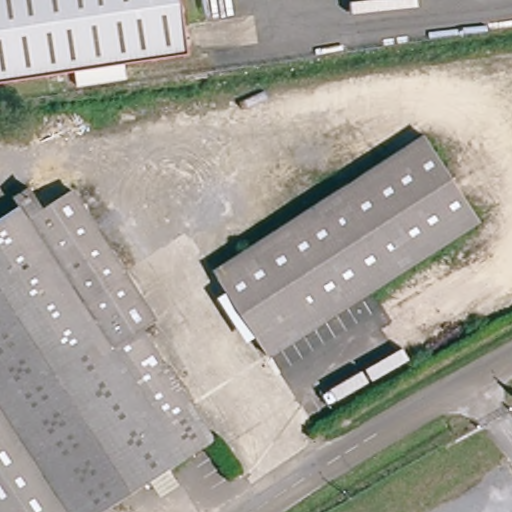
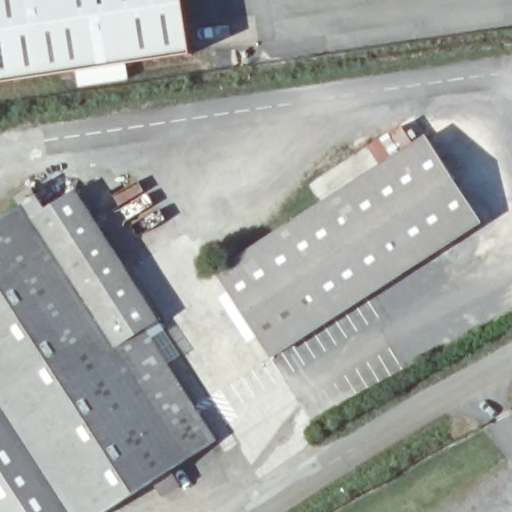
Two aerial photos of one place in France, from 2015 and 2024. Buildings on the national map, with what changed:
unchanged [(194,47),(125,59),(95,65),(0,82),(0,0),(186,0),(194,47)]
unchanged [(425,135),(480,222),(270,357),(214,270),(425,135)]
unchanged [(14,201),(32,191),(49,211),(74,195),(166,337),(152,345),(216,443),(109,512),(0,512),(0,224),(21,211),(14,201)]

